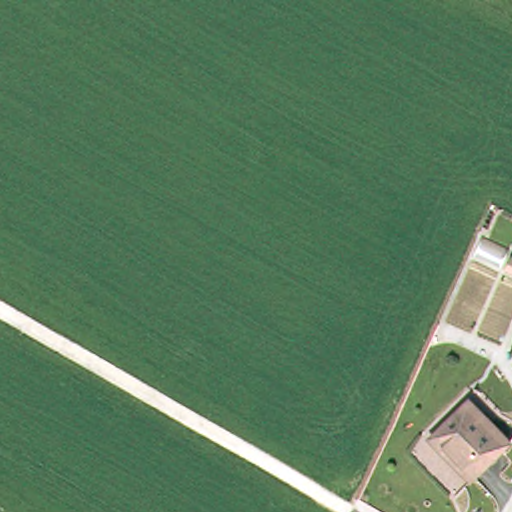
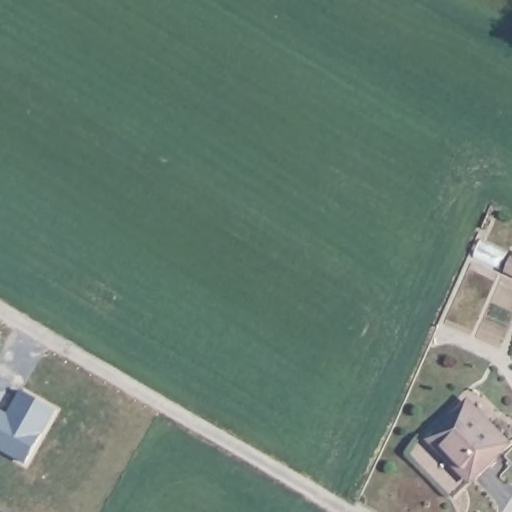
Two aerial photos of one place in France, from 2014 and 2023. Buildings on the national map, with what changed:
new [(4,393),(0,401),(0,391),(4,393)]
new [(4,422),(20,393),(53,411),(24,463),(0,450),(0,420),(4,422)]
unchanged [(476,483),(437,442),(472,408),(512,449),(476,483)]

